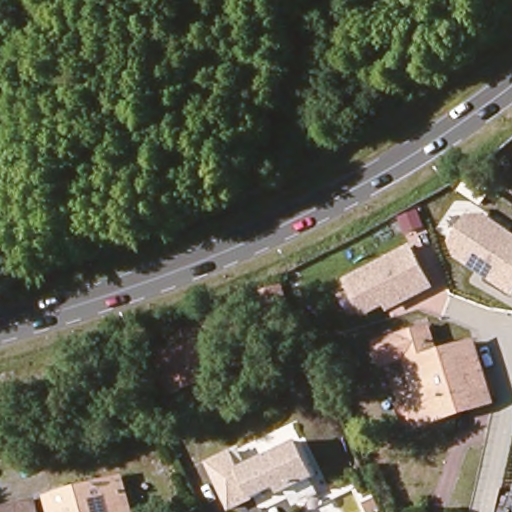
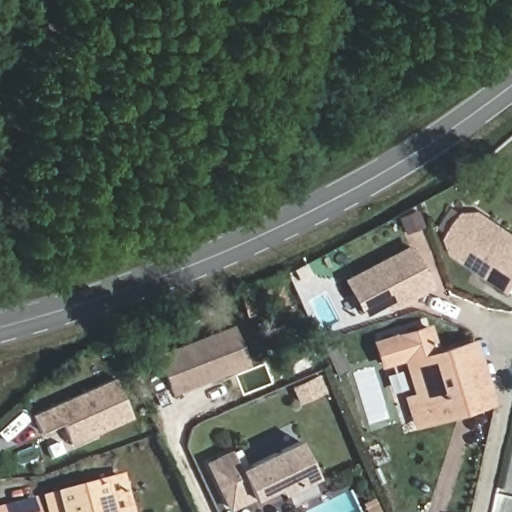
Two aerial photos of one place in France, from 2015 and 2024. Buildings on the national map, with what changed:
unchanged [(452,243),(466,216),(489,215),(512,231),(512,297),(460,264),(452,243)]
unchanged [(390,310),(387,305),(361,317),(344,279),(413,245),(434,288),(390,310)]
unchanged [(285,279),(291,298),(271,304),(264,286),(285,279)]
new [(249,366),(173,394),(158,354),(234,324),(249,366)]
unchanged [(427,330),(436,357),(471,346),(489,404),(414,427),(406,402),(415,399),(404,362),(378,370),(371,347),(427,330)]
demolished [(215,379),(169,398),(156,358),(201,339),(215,379)]
new [(115,378),(133,417),(72,443),(62,423),(43,431),(34,414),(115,378)]
unchanged [(248,470),(298,446),(312,478),(279,493),(276,488),(259,495),(251,499),(239,474),(248,470)]
unchanged [(251,499),(259,495),(260,500),(234,512),(229,512),(206,461),(239,448),(248,470),(239,474),(251,499)]
unchanged [(51,512),(49,500),(125,481),(133,512),(51,512)]
unchanged [(4,512),(38,503),(40,512),(4,512)]

